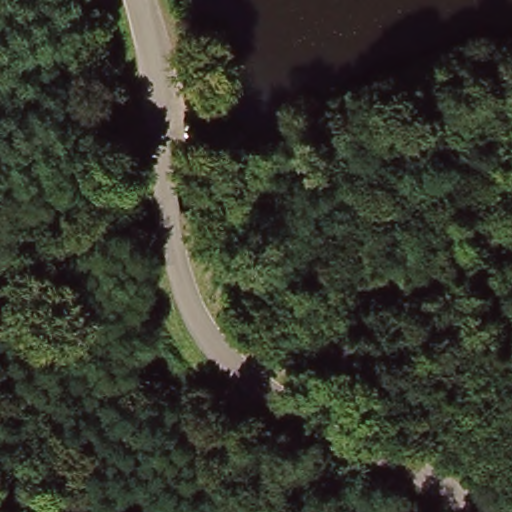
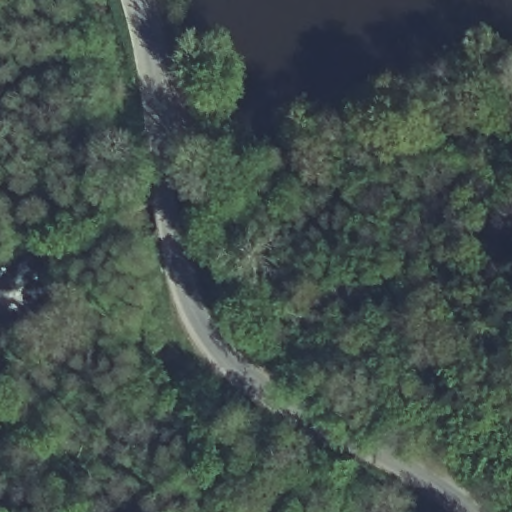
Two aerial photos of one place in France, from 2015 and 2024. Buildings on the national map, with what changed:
[]

